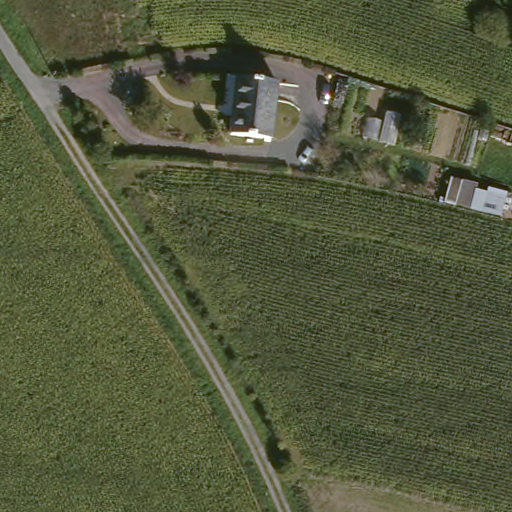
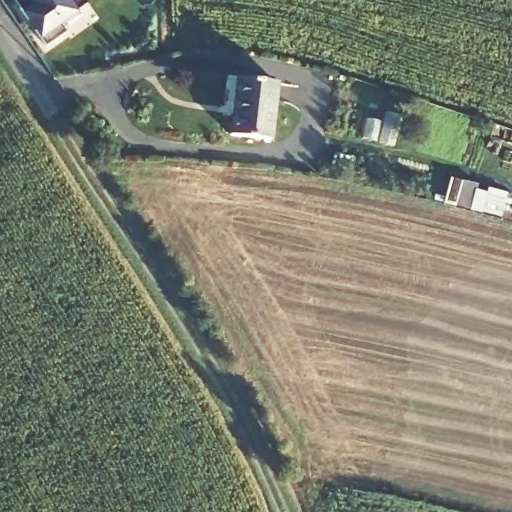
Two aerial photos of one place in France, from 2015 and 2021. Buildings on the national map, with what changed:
new [(60,22),(67,32),(46,46),(20,9),(13,0),(88,0),(89,2),(60,22)]
unchanged [(230,136),(237,78),(277,82),(270,140),(230,136)]
unchanged [(452,206),(459,181),(472,184),(471,191),(482,193),(484,188),(502,192),(496,217),(496,221),(451,211),(452,206)]

